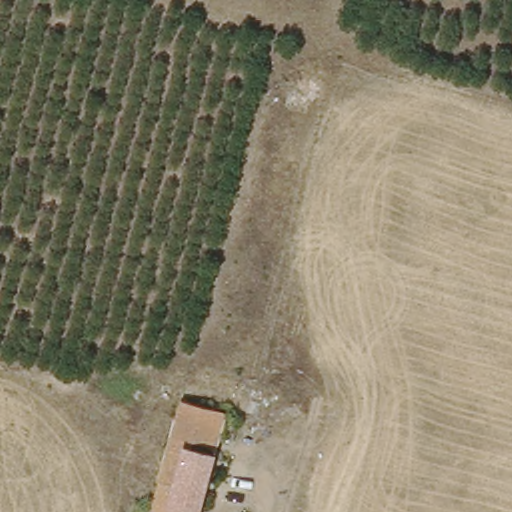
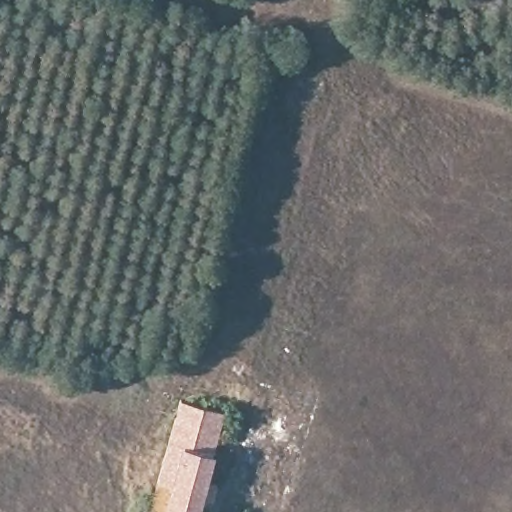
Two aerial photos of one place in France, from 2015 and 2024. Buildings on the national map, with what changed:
unchanged [(228,406),(198,512),(175,512),(155,505),(186,393),(228,406)]

